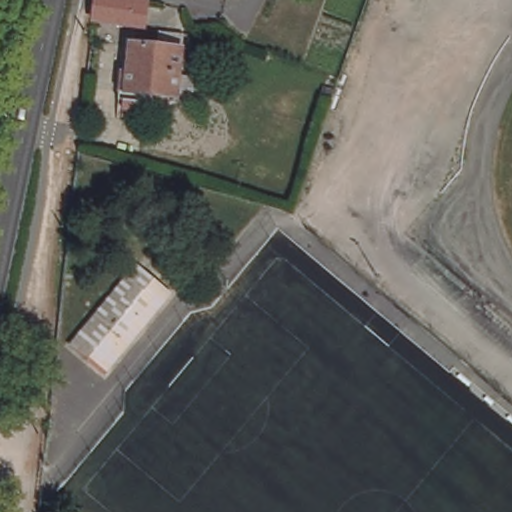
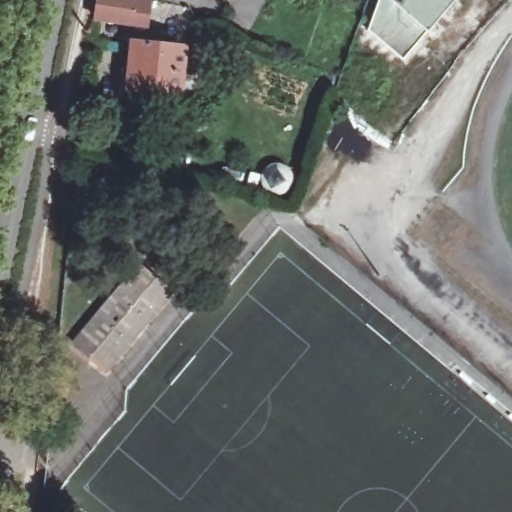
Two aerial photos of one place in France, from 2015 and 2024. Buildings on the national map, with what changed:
unchanged [(85,15),(87,0),(156,0),(152,6),(121,3),(119,20),(85,15)]
new [(377,0),(389,0),(426,32),(402,60),(365,29),(377,0)]
new [(426,32),(389,0),(453,0),(426,32)]
unchanged [(165,91),(163,98),(149,95),(150,89),(130,87),(134,39),(163,41),(164,26),(187,28),(186,45),(182,92),(165,91)]
unchanged [(140,261),(174,289),(108,369),(75,341),(140,261)]

